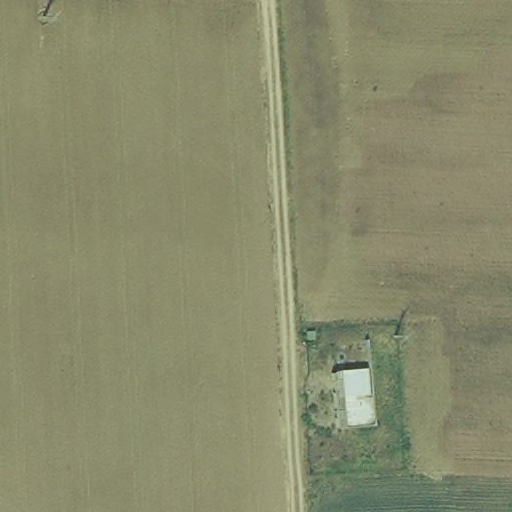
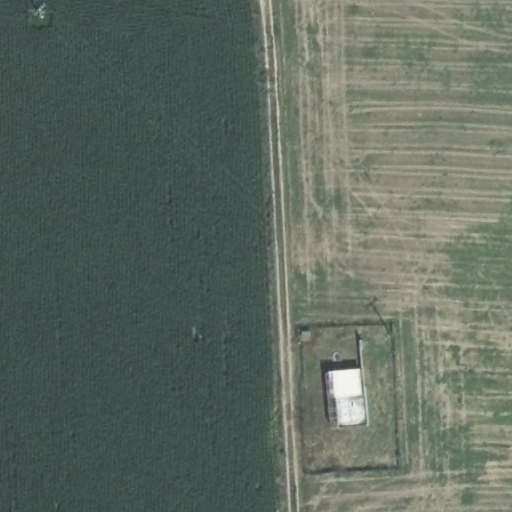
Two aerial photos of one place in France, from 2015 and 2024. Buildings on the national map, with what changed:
unchanged [(344,425),(344,421),(343,394),(336,394),(337,366),(370,365),(370,393),(374,393),(375,420),(375,424),(344,425)]

